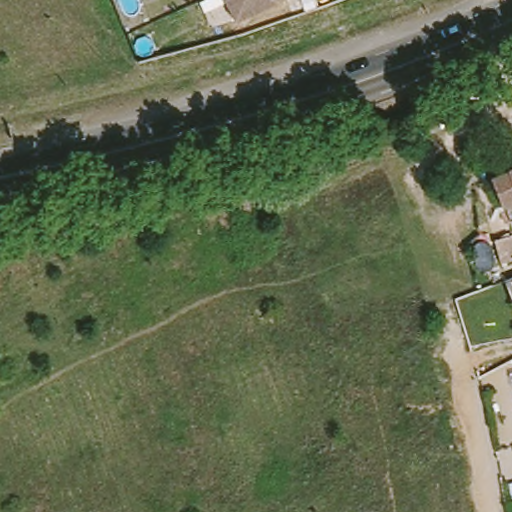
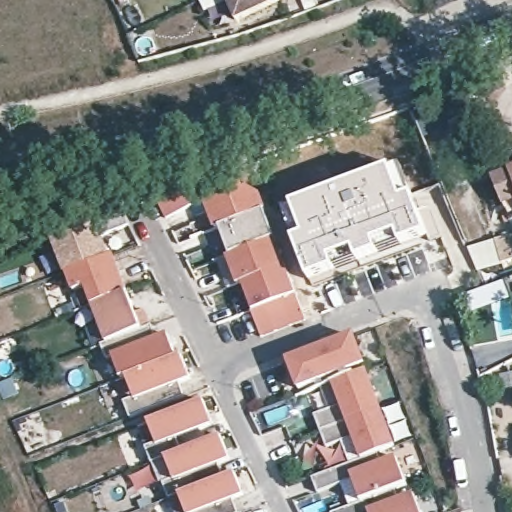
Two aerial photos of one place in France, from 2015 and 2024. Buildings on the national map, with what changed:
unchanged [(278,1),(233,22),(223,0),(278,0),(278,1)]
new [(337,187),(397,167),(409,195),(413,193),(431,238),(358,266),(355,262),(310,282),(293,240),(302,236),(291,206),(337,187)]
unchanged [(510,229),(503,214),(507,212),(496,185),(512,178),(512,228),(510,229)]
new [(265,212),(306,322),(261,338),(252,313),(253,312),(243,285),(242,285),(231,257),(234,256),(223,228),(265,212)]
new [(467,247),(495,240),(512,234),(512,260),(500,263),(502,266),(477,272),(467,247)]
new [(92,306),(85,287),(72,292),(67,273),(112,256),(126,290),(138,316),(144,330),(106,342),(92,306)]
unchanged [(507,281),(512,279),(512,306),(507,281)]
new [(504,281),(510,299),(472,316),(464,296),(504,281)]
new [(106,342),(144,330),(138,316),(146,313),(157,341),(168,336),(177,360),(124,380),(115,357),(108,359),(103,345),(106,342)]
new [(288,361),(354,336),(364,366),(299,389),(288,361)]
new [(177,360),(178,360),(187,383),(176,387),(182,400),(128,418),(123,405),(132,400),(124,380),(177,360)]
new [(368,370),(394,446),(377,451),(382,463),(396,457),(406,486),(394,489),(400,500),(413,495),(419,512),(334,512),(361,501),(353,480),(317,494),(312,478),(361,457),(353,436),(327,447),(314,415),(340,404),(332,383),(368,370)]
new [(149,423),(204,401),(212,425),(178,438),(182,452),(220,438),(228,460),(220,463),(224,478),(235,474),(243,497),(232,501),(236,512),(187,512),(180,496),(169,499),(163,483),(175,480),(166,458),(151,464),(146,447),(157,443),(149,423)]

